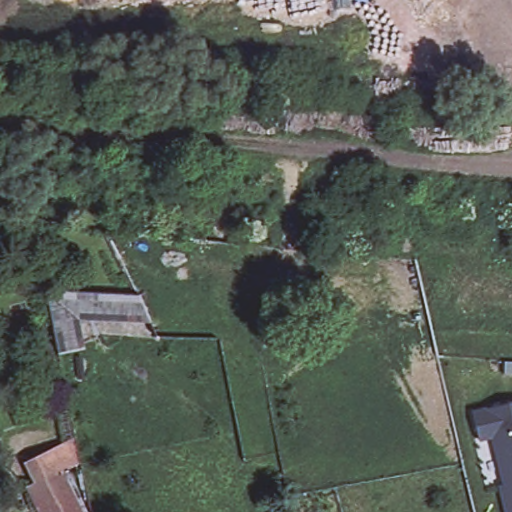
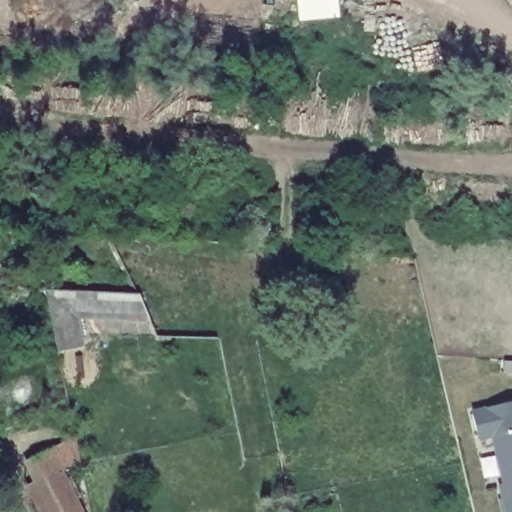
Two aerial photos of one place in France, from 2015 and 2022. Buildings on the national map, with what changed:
unchanged [(139,291),(148,322),(79,320),(80,352),(49,358),(40,287),(139,291)]
unchanged [(506,512),(500,486),(505,485),(493,437),(480,441),(472,413),(512,404),(512,512),(506,512)]
unchanged [(78,452),(80,465),(62,473),(62,471),(44,480),(33,458),(75,439),(78,452)]
unchanged [(62,473),(82,512),(59,512),(44,480),(62,471),(62,473)]
unchanged [(36,512),(25,489),(44,480),(59,512),(36,512)]

